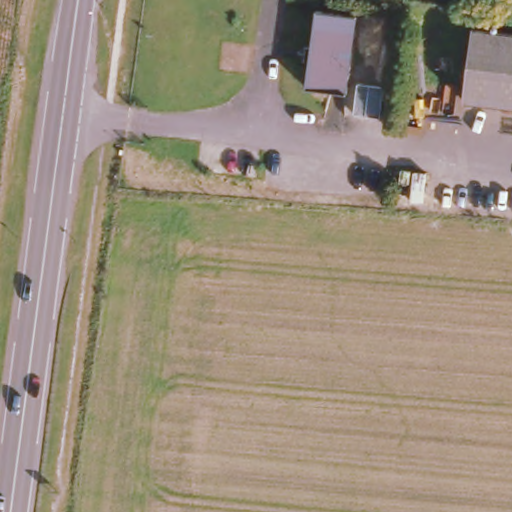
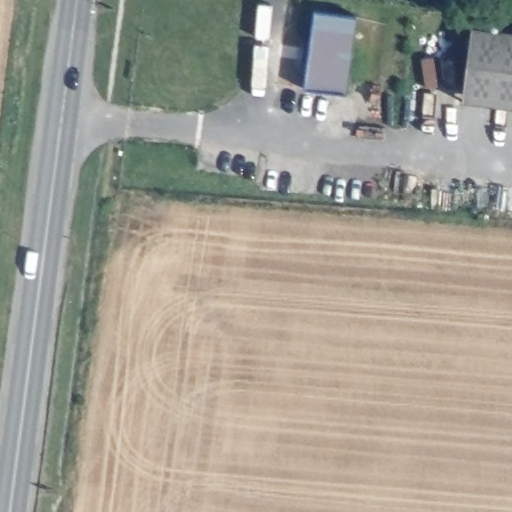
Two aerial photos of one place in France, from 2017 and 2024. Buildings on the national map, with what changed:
unchanged [(359,18),(350,95),(310,90),(320,12),(359,18)]
unchanged [(512,107),(466,101),(475,25),(512,30),(512,107)]

